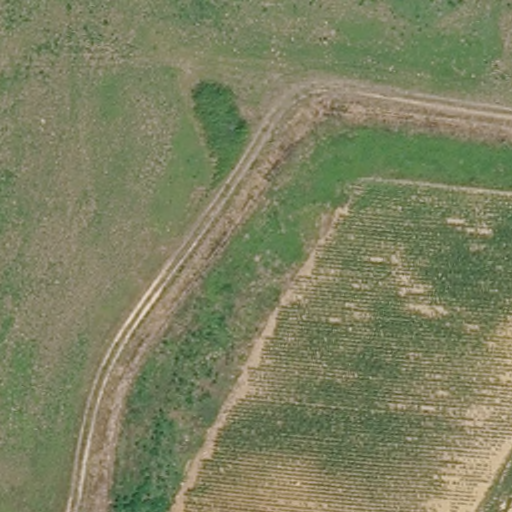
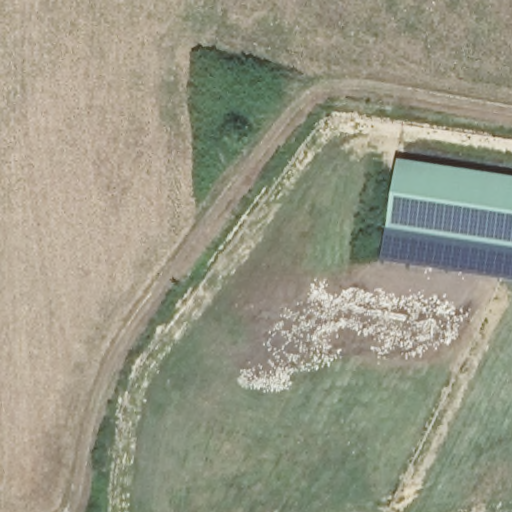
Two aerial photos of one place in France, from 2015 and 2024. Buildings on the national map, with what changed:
new [(389,227),(398,161),(512,177),(512,245),(389,227)]

